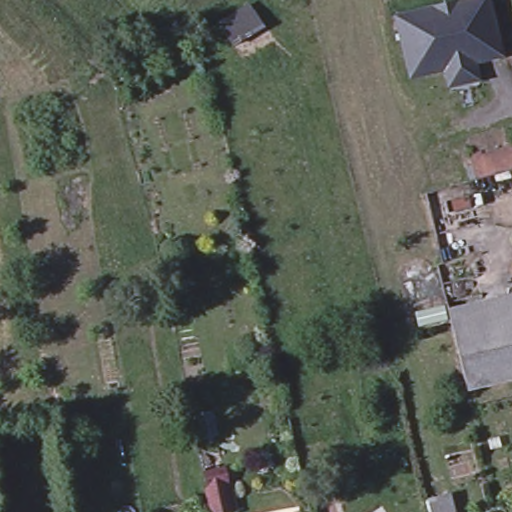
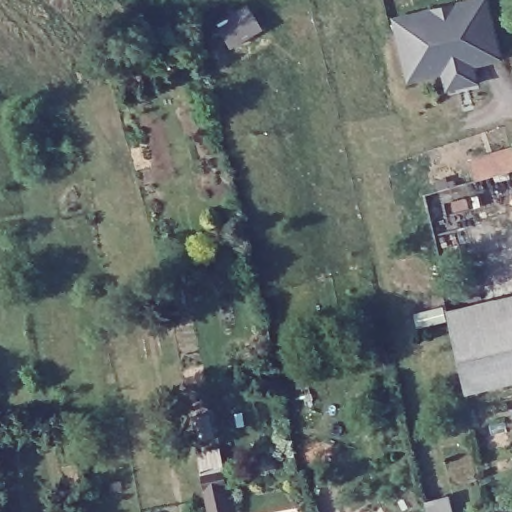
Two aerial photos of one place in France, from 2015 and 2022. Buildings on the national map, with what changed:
unchanged [(444,69),(410,77),(397,28),(395,17),(429,8),(440,6),(465,0),(488,0),(501,56),(490,58),(473,62),(476,77),(458,81),(447,84),(444,69)]
unchanged [(266,28),(225,50),(211,26),(249,4),(266,28)]
unchanged [(512,146),(512,168),(481,177),(474,179),(468,159),(476,157),(512,146)]
unchanged [(446,320),(510,305),(512,305),(512,368),(460,380),(446,320)]
unchanged [(225,512),(204,512),(197,477),(217,473),(225,512)]
unchanged [(453,512),(429,512),(425,496),(447,490),(453,512)]

